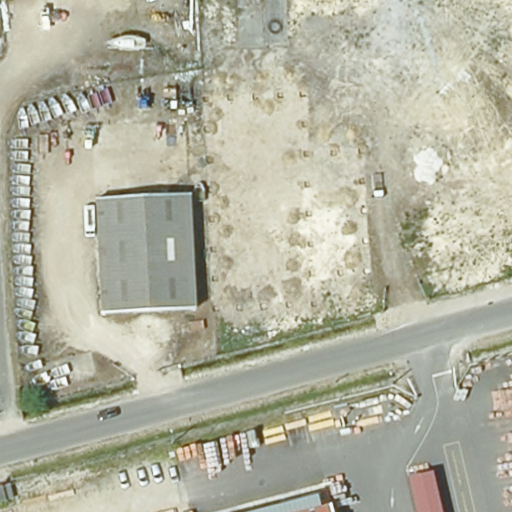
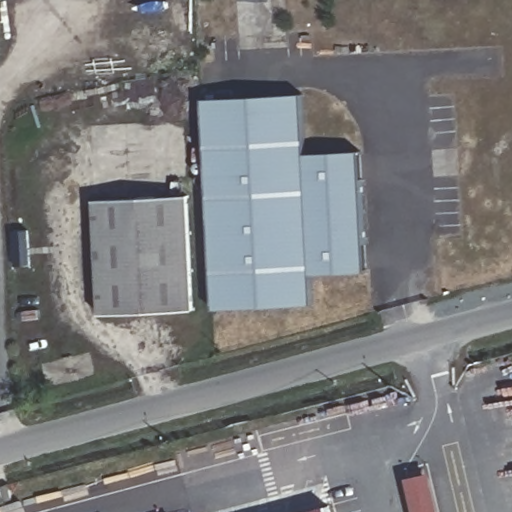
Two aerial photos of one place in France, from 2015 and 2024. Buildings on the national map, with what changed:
new [(314,305),(216,308),(203,99),(302,93),(305,153),(360,150),(367,272),(313,274),(314,305)]
unchanged [(194,315),(101,319),(97,199),(192,198),(194,315)]
unchanged [(440,512),(416,512),(408,480),(431,473),(440,512)]
unchanged [(3,512),(0,512),(0,495),(1,495),(3,512)]
unchanged [(329,512),(325,512),(329,511),(329,512)]

